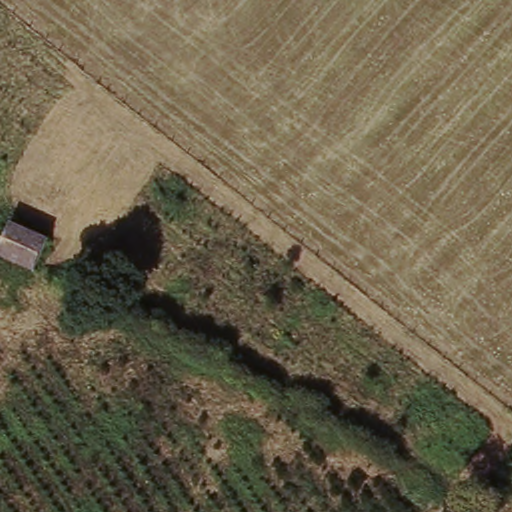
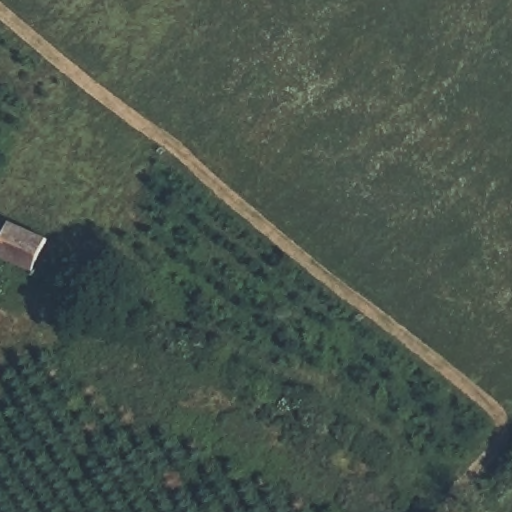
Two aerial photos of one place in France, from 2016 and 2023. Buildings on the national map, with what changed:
unchanged [(1,252),(19,223),(55,241),(38,272),(1,252)]

